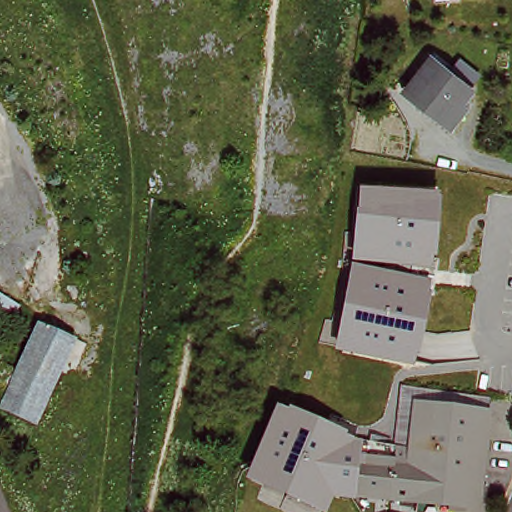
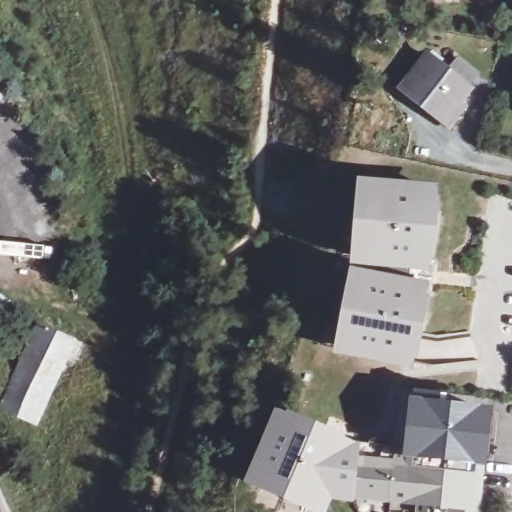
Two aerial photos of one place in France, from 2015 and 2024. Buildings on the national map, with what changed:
unchanged [(402,92),(427,62),(445,76),(455,65),(474,80),(465,93),(467,95),(456,108),(464,114),(449,132),(402,92)]
unchanged [(420,333),(417,333),(410,362),(400,360),(353,349),(357,329),(347,327),(354,294),(355,295),(359,275),(367,277),(389,281),(390,263),(369,261),(361,259),(362,247),(362,240),(361,240),(364,206),(365,206),(366,186),(374,186),(434,192),(432,220),(435,221),(434,238),(430,238),(429,264),(435,265),(432,291),(425,289),(420,315),(422,316),(420,333)]
unchanged [(32,332),(69,345),(31,427),(0,413),(0,403),(32,332)]
unchanged [(414,412),(487,420),(481,466),(475,512),(465,512),(437,509),(387,503),(394,454),(409,456),(414,412)]
unchanged [(327,498),(325,504),(305,497),(302,505),(270,492),(273,484),(254,476),(277,422),(304,433),(305,430),(321,437),(320,440),(330,444),(354,454),(354,459),(355,499),(327,498)]
unchanged [(354,459),(354,454),(354,451),(394,454),(387,503),(355,499),(354,459)]

